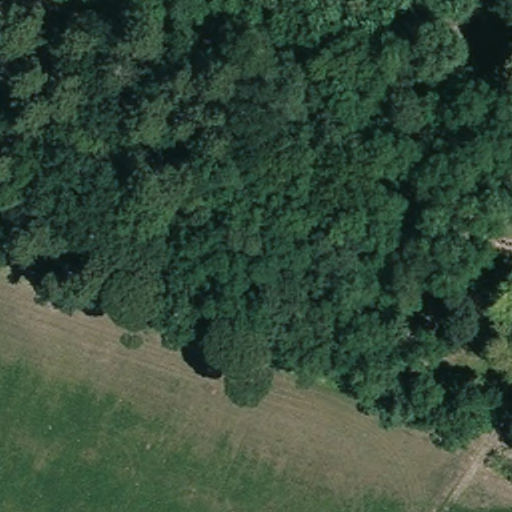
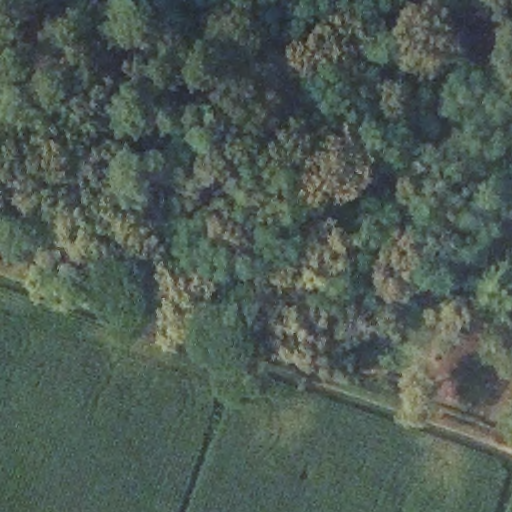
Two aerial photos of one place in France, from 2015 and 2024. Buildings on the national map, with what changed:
unchanged [(512,320),(512,341),(504,339),(507,318),(512,320)]

